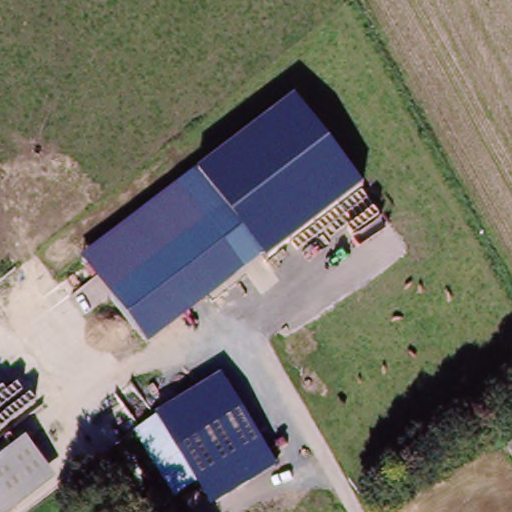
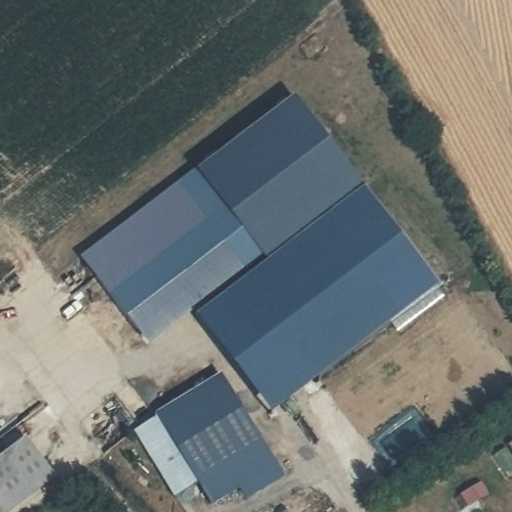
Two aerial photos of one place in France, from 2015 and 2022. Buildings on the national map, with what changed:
unchanged [(367,185),(153,345),(86,255),(300,96),(367,185)]
new [(435,282),(277,406),(200,310),(367,185),(435,282)]
unchanged [(261,442),(277,468),(211,507),(195,481),(154,415),(221,376),(261,442)]
unchanged [(512,410),(512,433),(501,419),(512,410)]
unchanged [(24,454),(42,484),(0,510),(0,468),(24,454)]
unchanged [(46,489),(51,497),(26,512),(0,512),(0,510),(42,484),(46,489)]

